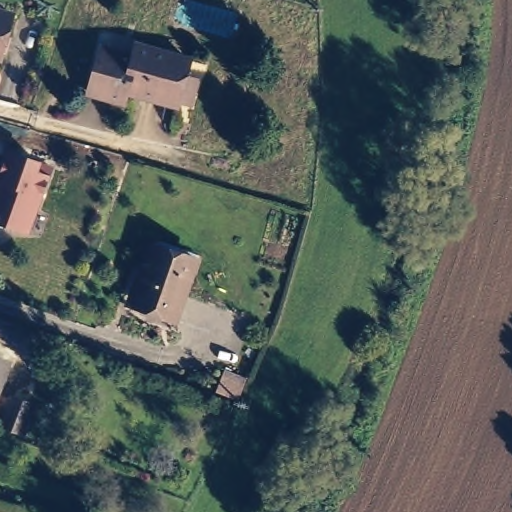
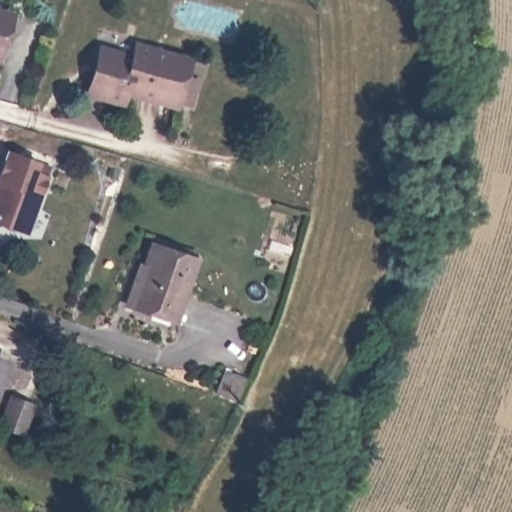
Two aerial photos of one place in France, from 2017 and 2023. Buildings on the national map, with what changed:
unchanged [(0,43),(0,18),(7,20),(0,43)]
unchanged [(167,115),(116,101),(113,113),(79,104),(91,59),(124,67),(127,55),(179,70),(175,85),(188,89),(181,115),(167,112),(167,115)]
unchanged [(0,173),(4,163),(33,173),(30,183),(42,187),(30,221),(24,219),(16,240),(0,235),(0,173)]
unchanged [(122,308),(125,303),(136,270),(142,271),(149,250),(192,265),(184,286),(172,320),(170,325),(122,308)]
unchanged [(2,426),(12,397),(32,405),(22,434),(2,426)]

